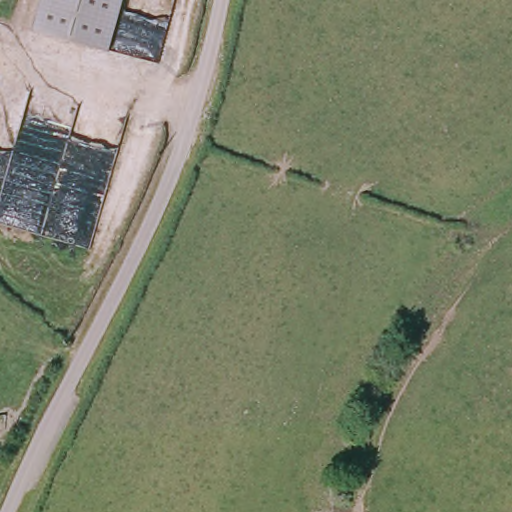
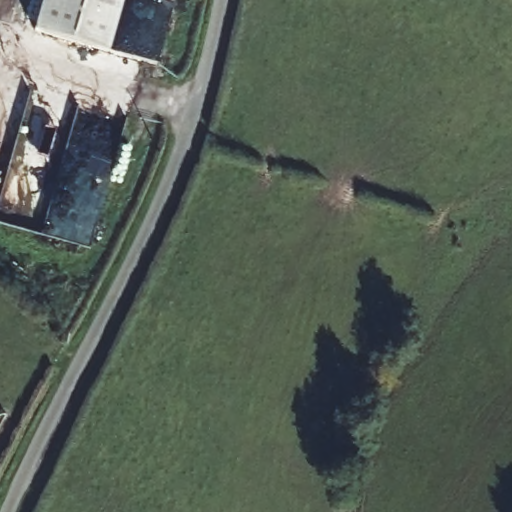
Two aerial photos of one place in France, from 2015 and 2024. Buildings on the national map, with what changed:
unchanged [(124,0),(110,51),(33,31),(42,0),(124,0)]

